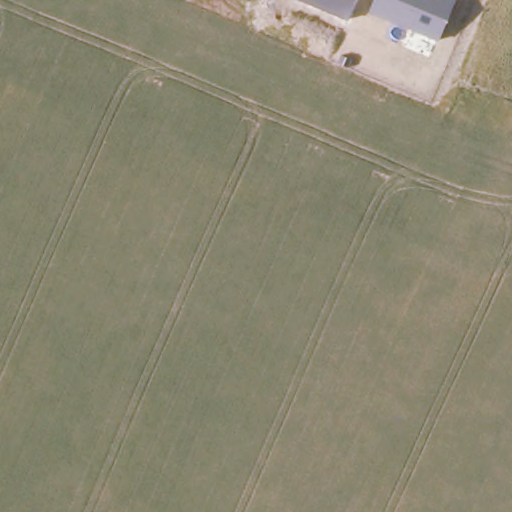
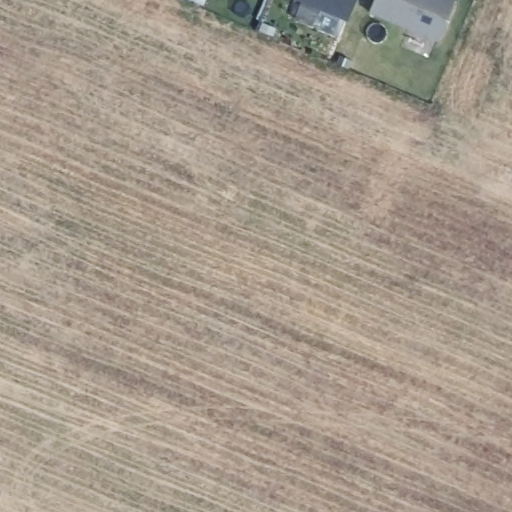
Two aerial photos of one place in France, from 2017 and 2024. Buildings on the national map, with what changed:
unchanged [(299,0),(357,0),(349,21),(299,0)]
unchanged [(370,13),(375,0),(456,0),(439,41),(370,13)]

